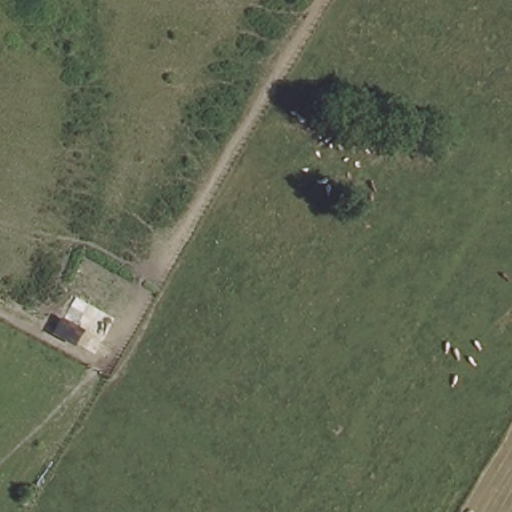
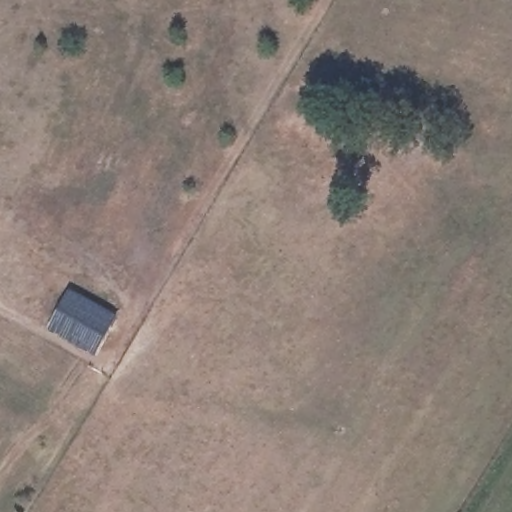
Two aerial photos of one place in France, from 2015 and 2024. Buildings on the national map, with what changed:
new [(96,357),(46,330),(69,289),(118,316),(96,357)]

